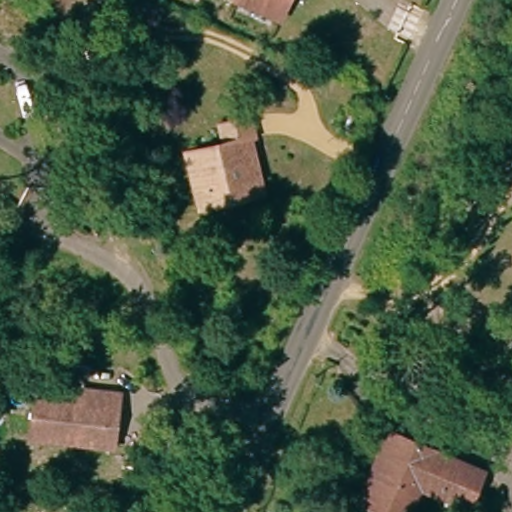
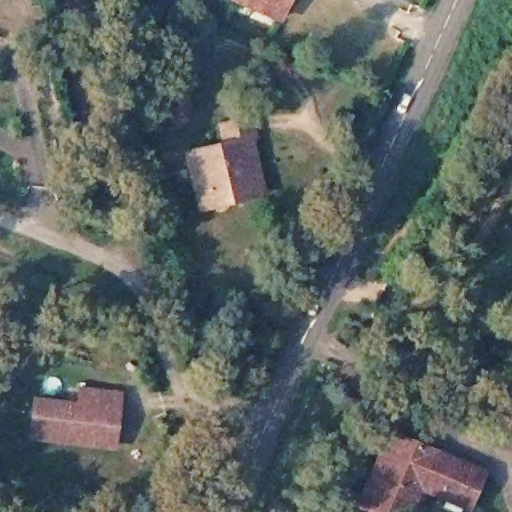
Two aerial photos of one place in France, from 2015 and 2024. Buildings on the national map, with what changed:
unchanged [(239,0),(294,0),(285,21),(239,2),(239,0)]
unchanged [(189,172),(185,154),(223,147),(220,129),(251,123),(255,142),(248,145),(260,199),(247,202),(197,215),(189,172)]
unchanged [(100,447),(30,437),(35,397),(82,404),(85,391),(124,397),(121,412),(116,448),(100,447)]
unchanged [(436,491),(440,482),(426,477),(413,512),(395,512),(370,502),(396,434),(474,465),(487,470),(473,505),(436,491)]

